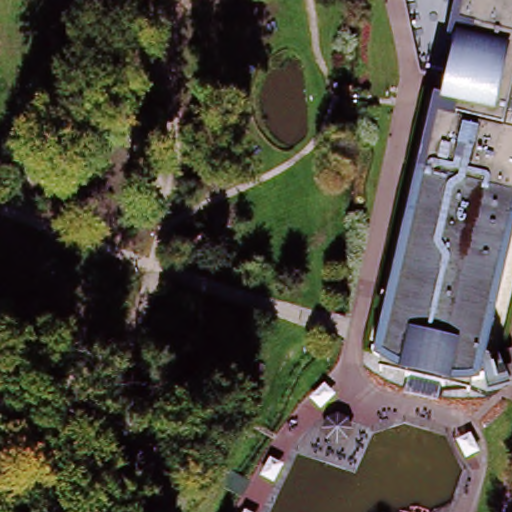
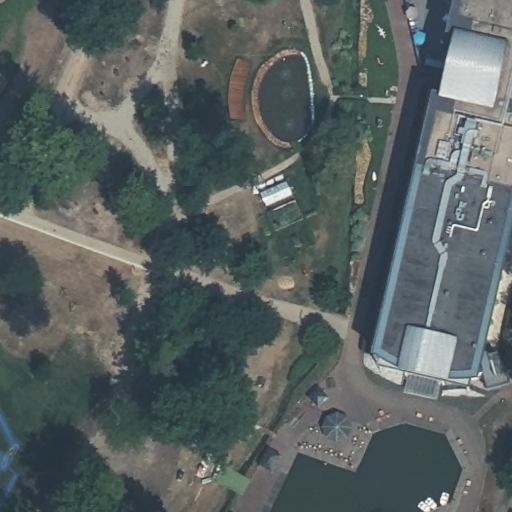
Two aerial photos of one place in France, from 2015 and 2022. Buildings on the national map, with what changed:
unchanged [(383,340),(457,8),(452,0),(512,0),(512,221),(479,365),(485,386),(473,387),(436,387),(405,379),(382,368),(367,360),(383,340)]

